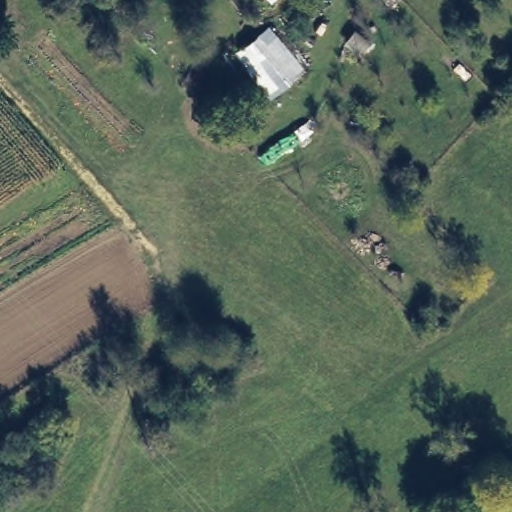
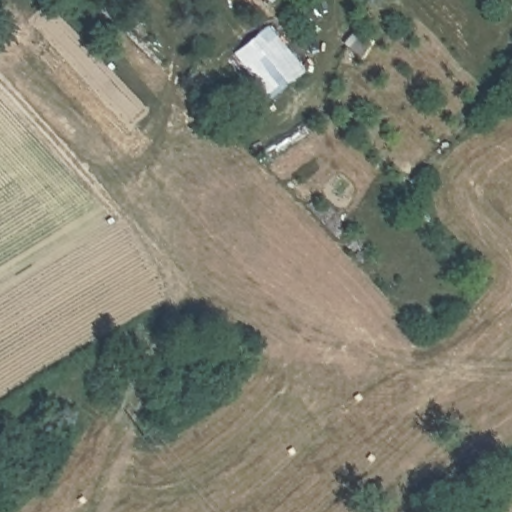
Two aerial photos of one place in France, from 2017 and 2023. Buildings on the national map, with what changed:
unchanged [(267,0),(275,0),(271,4),(267,0)]
unchanged [(307,71),(271,99),(236,51),(272,24),(307,71)]

